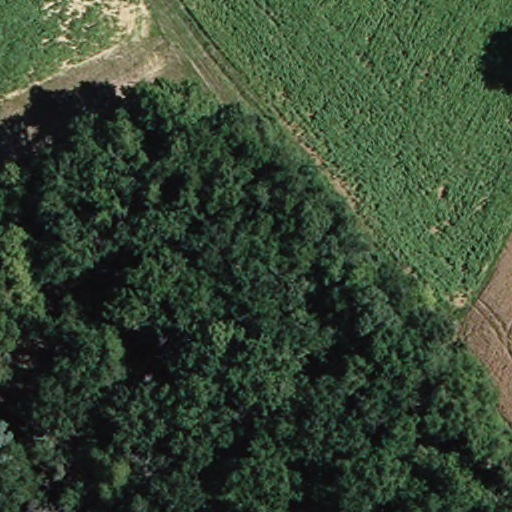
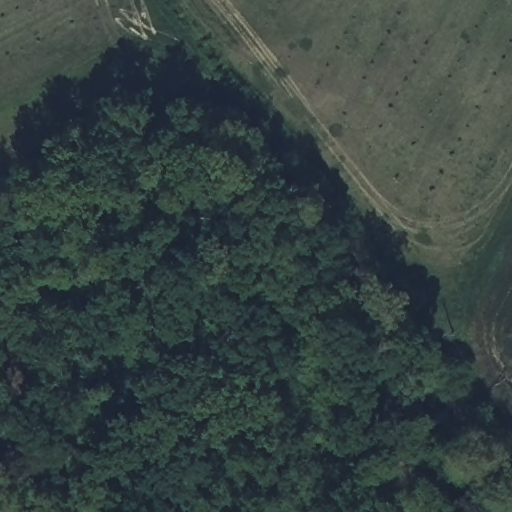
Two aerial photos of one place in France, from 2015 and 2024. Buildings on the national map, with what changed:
unchanged [(101,502),(97,499),(91,498),(81,493),(77,483),(79,477),(88,468),(97,468),(109,474),(112,490),(101,502)]

